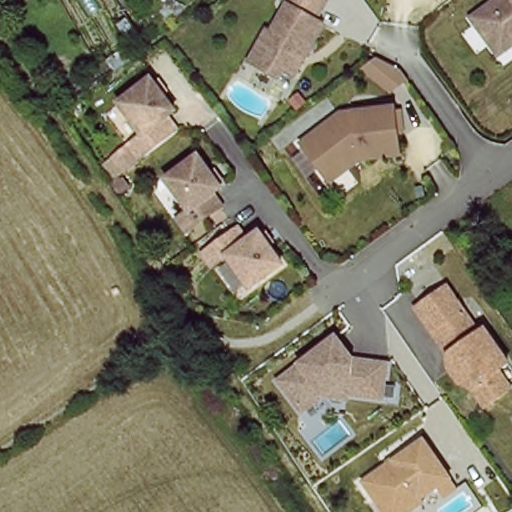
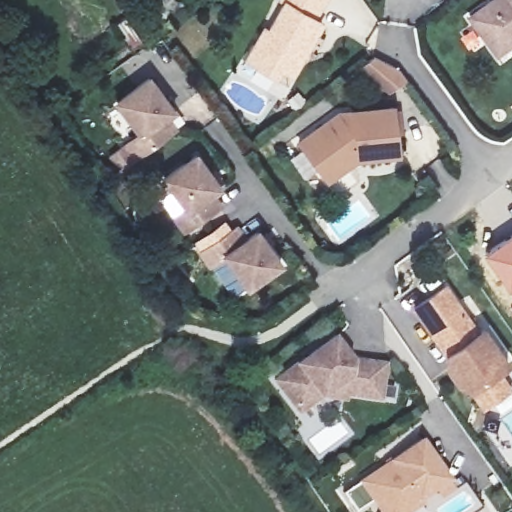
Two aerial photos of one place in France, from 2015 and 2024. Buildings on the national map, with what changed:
unchanged [(283,72),(279,81),(247,63),(267,26),(271,29),(285,4),(280,1),(281,0),(326,0),(317,18),(326,23),(295,77),(283,72)]
unchanged [(474,22),(504,0),(512,0),(512,49),(500,58),(496,52),(474,22)]
unchanged [(360,70),(377,54),(407,81),(389,95),(360,70)]
unchanged [(175,113),(168,118),(178,131),(123,171),(114,158),(139,139),(116,107),(152,81),(175,113)]
unchanged [(327,176),(304,146),(345,115),(399,111),(402,158),(363,161),(351,170),(332,184),(327,176)]
unchanged [(202,161),(225,193),(216,199),(226,211),(191,237),(181,224),(188,219),(164,189),(202,161)]
unchanged [(242,229),(251,242),(263,233),(287,266),(252,292),(228,259),(221,264),(212,252),(242,229)]
new [(508,289),(482,252),(512,231),(512,287),(508,289)]
unchanged [(482,334),(488,330),(512,364),(504,370),(512,381),(512,390),(489,407),(473,385),(459,383),(449,368),(451,354),(417,308),(447,286),(482,334)]
unchanged [(273,379),(297,362),(336,333),(356,360),(391,363),(384,403),(324,397),(301,415),(273,379)]
unchanged [(374,500),(360,511),(349,496),(363,486),(424,443),(452,482),(419,505),(422,509),(417,512),(381,512),(376,504),(374,500)]

